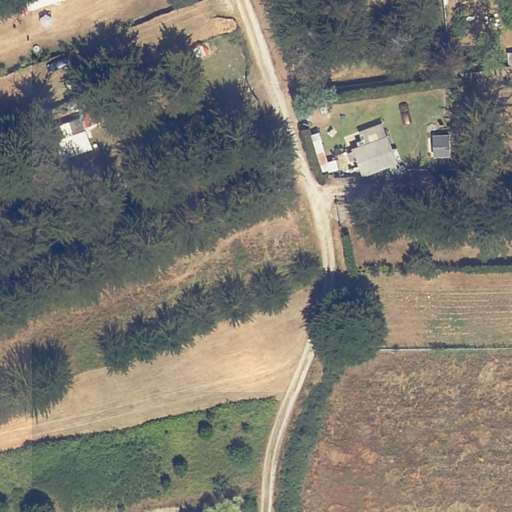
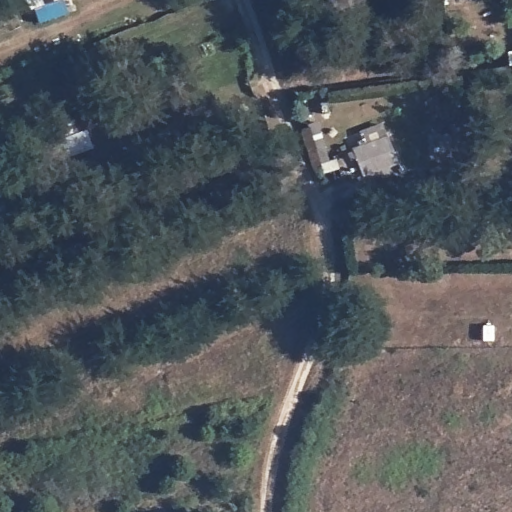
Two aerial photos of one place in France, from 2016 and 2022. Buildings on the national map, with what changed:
unchanged [(377,127),(388,151),(353,166),(342,141),(377,127)]

